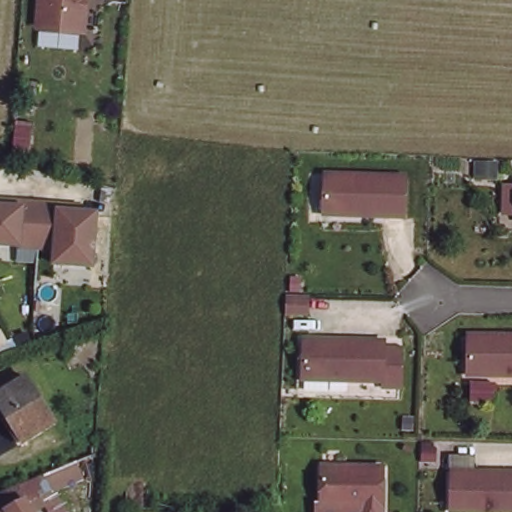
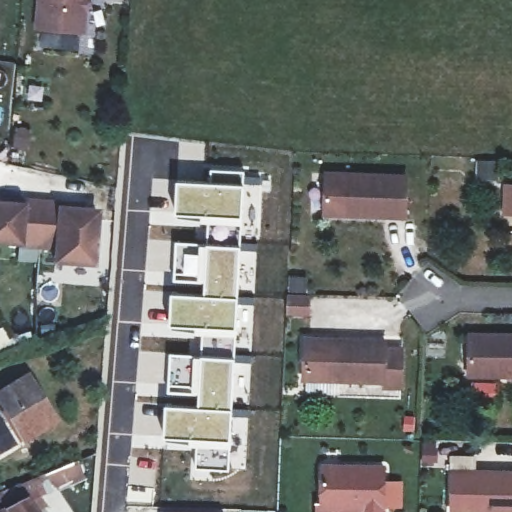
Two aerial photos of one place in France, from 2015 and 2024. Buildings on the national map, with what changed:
unchanged [(78,26),(32,22),(34,0),(80,0),(78,26)]
new [(176,179),(209,179),(210,167),(245,169),(242,216),(175,213),(176,179)]
unchanged [(325,212),(326,174),(405,176),(404,215),(325,212)]
unchanged [(55,262),(56,247),(0,243),(0,205),(2,205),(2,200),(22,201),(60,204),(80,206),(80,211),(97,212),(93,265),(70,263),(55,262)]
new [(175,240),(240,243),(239,294),(202,291),(202,284),(172,282),(175,240)]
new [(170,290),(202,291),(239,294),(237,328),(170,326),(170,290)]
unchanged [(287,314),(287,296),(310,296),(310,315),(287,314)]
new [(212,348),(202,348),(202,330),(237,332),(235,353),(233,406),(197,403),(197,394),(167,393),(167,351),(212,352),(212,348)]
unchanged [(382,385),(382,380),(304,378),(305,338),(385,340),(385,348),(401,348),(400,385),(382,385)]
unchanged [(470,383),(470,344),(512,345),(512,384),(470,383)]
unchanged [(0,399),(32,381),(60,427),(27,447),(0,400),(0,399)]
new [(195,468),(194,445),(172,441),(172,439),(164,439),(164,402),(197,403),(233,406),(232,446),(230,469),(195,468)]
unchanged [(363,507),(363,501),(322,501),(323,461),(384,462),(384,507),(363,507)]
unchanged [(512,472),(512,512),(453,512),(453,472),(512,472)]
unchanged [(0,493),(44,475),(52,488),(40,494),(45,502),(50,511),(47,512),(1,512),(0,510),(0,493)]
unchanged [(363,512),(322,512),(322,501),(363,501),(363,507),(363,512)]

